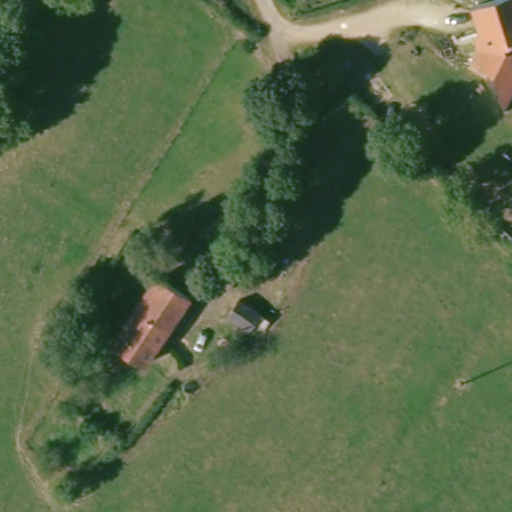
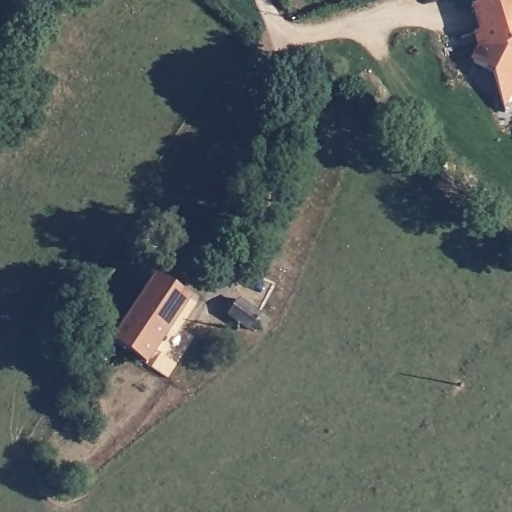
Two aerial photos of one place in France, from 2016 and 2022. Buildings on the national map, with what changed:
unchanged [(482,0),(512,0),(512,75),(511,76),(497,80),(492,66),(472,57),(479,42),(482,44),(485,39),(474,2),(482,0)]
unchanged [(117,341),(158,277),(191,300),(150,362),(117,341)]
unchanged [(266,318),(259,327),(252,323),(247,328),(227,313),(238,298),(266,318)]

